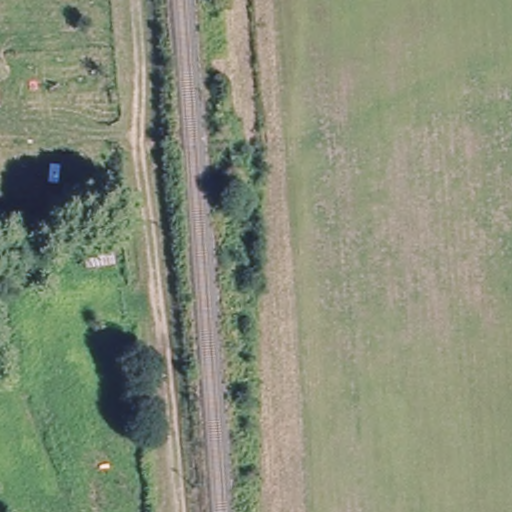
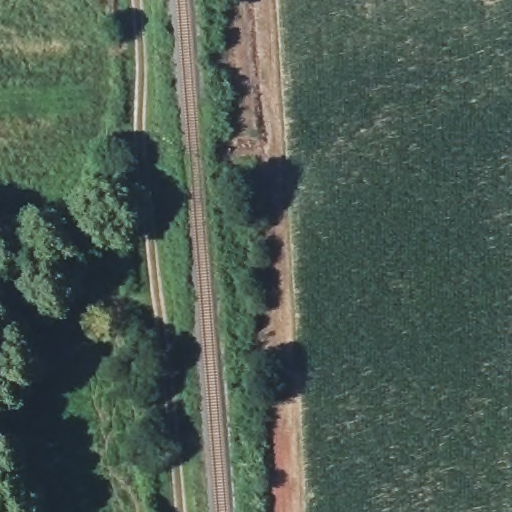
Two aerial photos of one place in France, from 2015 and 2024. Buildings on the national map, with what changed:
unchanged [(111,239),(113,268),(85,270),(81,242),(111,239)]

